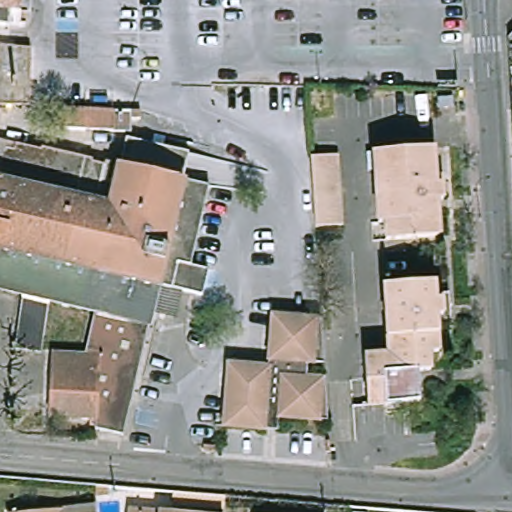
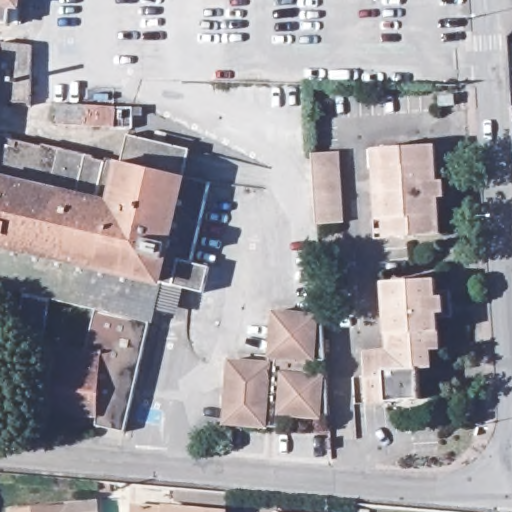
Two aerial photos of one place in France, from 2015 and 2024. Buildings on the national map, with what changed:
unchanged [(10,0),(9,11),(9,12),(8,25),(0,24),(0,0),(10,0)]
unchanged [(9,12),(10,0),(18,0),(16,13),(9,12)]
unchanged [(35,59),(30,104),(0,102),(0,55),(35,59)]
unchanged [(458,93),(458,104),(443,105),(443,94),(458,93)]
unchanged [(129,127),(54,123),(54,102),(130,106),(129,127)]
unchanged [(120,161),(127,135),(188,151),(183,176),(120,161)]
unchanged [(175,316),(151,310),(149,318),(123,431),(96,426),(98,414),(53,410),(55,350),(87,352),(92,303),(45,291),(40,348),(18,346),(23,286),(0,280),(0,178),(5,158),(9,145),(16,146),(17,139),(41,145),(42,141),(92,155),(91,157),(105,160),(105,158),(120,161),(183,176),(210,182),(192,261),(178,258),(172,286),(182,289),(175,316)]
unchanged [(389,217),(382,218),(379,166),(378,148),(388,148),(438,144),(441,179),(447,178),(448,194),(442,195),(445,232),(401,235),(390,236),(389,217)]
unchanged [(315,154),(342,151),(346,222),(319,224),(315,154)]
unchanged [(368,352),(392,351),(388,280),(439,278),(440,291),(454,290),(456,318),(442,319),(444,351),(433,351),(434,369),(421,370),(423,400),(371,402),(368,352)]
unchanged [(266,428),(225,425),(232,350),(272,353),(275,314),(330,319),(333,365),(311,364),(310,376),(334,379),(337,423),(279,417),(278,430),(266,428)]
unchanged [(67,507),(100,504),(102,512),(14,512),(67,507)]
unchanged [(135,510),(165,512),(134,512),(135,510)]

